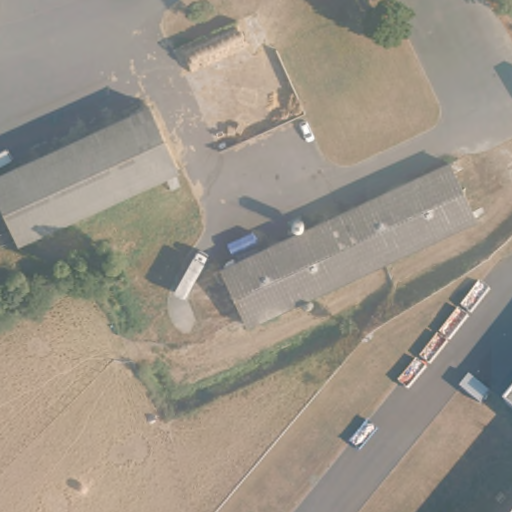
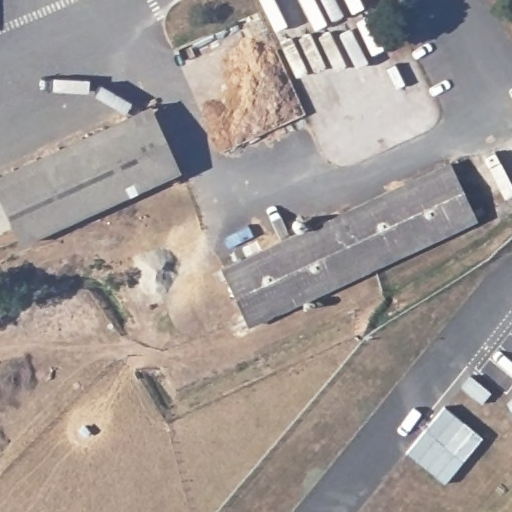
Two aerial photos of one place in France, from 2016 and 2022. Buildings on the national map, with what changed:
unchanged [(177,169),(21,244),(0,201),(0,177),(149,108),(177,169)]
unchanged [(452,164),(479,220),(250,327),(224,270),(452,164)]
new [(442,406),(481,437),(443,483),(405,451),(442,406)]

